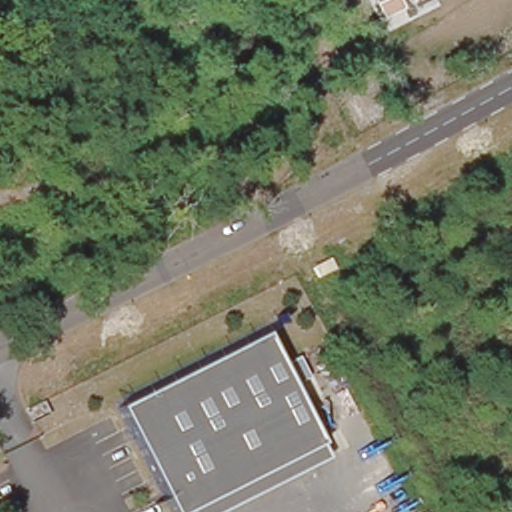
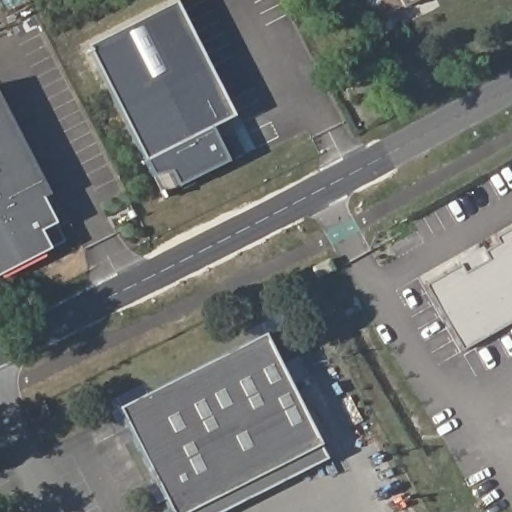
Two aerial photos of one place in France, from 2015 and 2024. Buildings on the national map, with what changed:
new [(153,175),(87,46),(175,0),(234,116),(211,127),(229,161),(179,188),(164,196),(153,175)]
unchanged [(383,15),(375,0),(418,0),(406,6),(383,15)]
new [(42,197),(55,223),(64,240),(50,249),(43,253),(45,257),(5,278),(3,273),(0,274),(0,99),(50,194),(42,197)]
new [(427,287),(502,243),(499,237),(512,229),(512,324),(462,352),(427,287)]
unchanged [(262,335),(324,458),(214,512),(169,512),(118,407),(262,335)]

